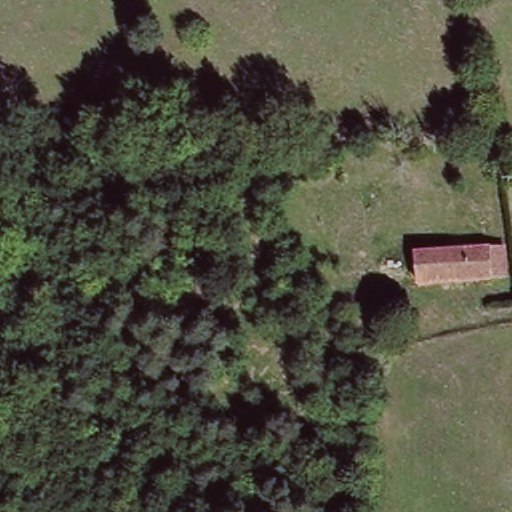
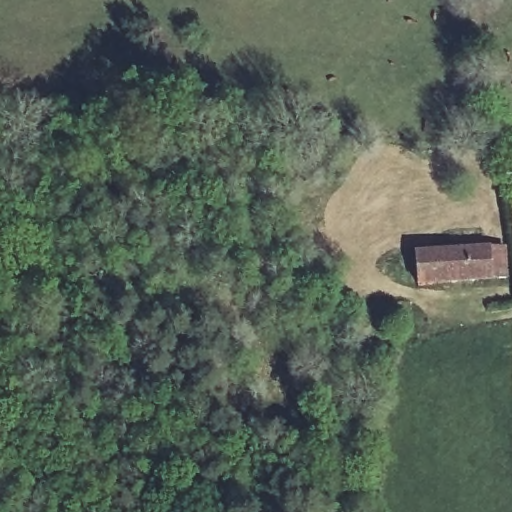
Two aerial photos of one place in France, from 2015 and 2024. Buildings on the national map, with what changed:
unchanged [(502,252),(506,281),(457,285),(456,255),(502,252)]
unchanged [(457,285),(417,285),(415,256),(456,255),(457,285)]

